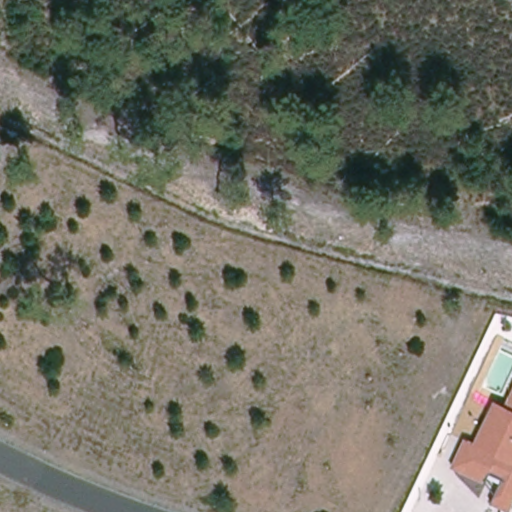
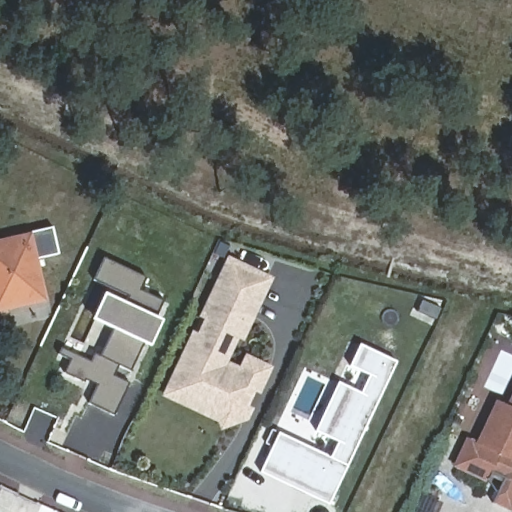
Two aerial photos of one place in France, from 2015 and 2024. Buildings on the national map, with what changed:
new [(39,259),(47,302),(0,312),(0,240),(31,232),(54,227),(59,254),(39,259)]
new [(143,295),(166,306),(131,376),(119,370),(114,379),(130,387),(114,420),(88,407),(101,381),(89,376),(84,386),(65,376),(70,363),(59,358),(62,351),(91,365),(95,357),(101,360),(130,301),(96,284),(107,261),(149,282),(143,295)]
new [(225,262),(261,279),(234,334),(231,333),(216,364),(237,374),(243,361),(260,369),(238,415),(219,421),(216,417),(164,391),(225,262)]
new [(339,441),(316,430),(338,383),(362,394),(370,376),(351,366),(361,344),(398,362),(329,506),(261,473),(280,433),(331,458),(339,441)]
unchanged [(490,501),(498,482),(486,477),(485,479),(450,464),(464,435),(472,438),(493,398),(505,403),(512,391),(512,507),(510,510),(490,501)]

